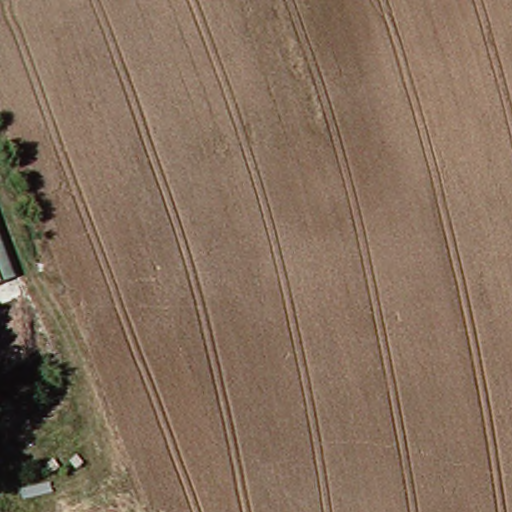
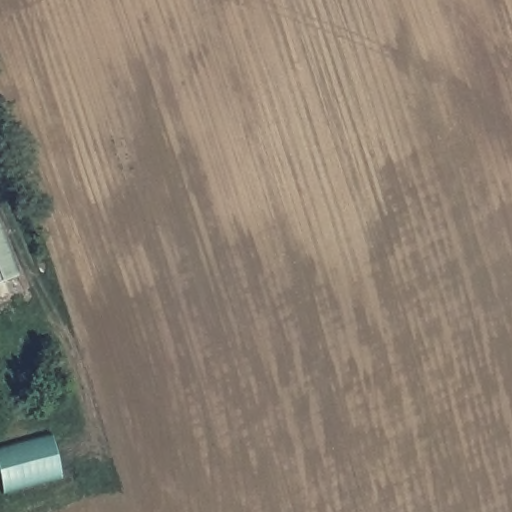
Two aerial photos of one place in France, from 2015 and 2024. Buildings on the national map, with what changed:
unchanged [(20,280),(0,288),(0,231),(20,280)]
new [(5,493),(0,475),(0,449),(53,435),(64,477),(5,493)]

